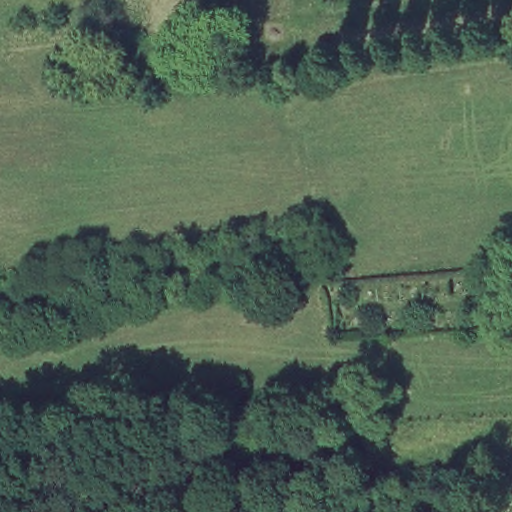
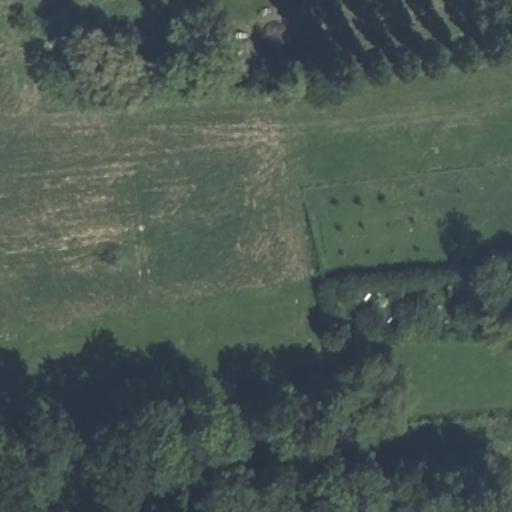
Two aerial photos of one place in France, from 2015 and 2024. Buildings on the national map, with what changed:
unchanged [(512,292),(512,304),(508,293),(512,292)]

